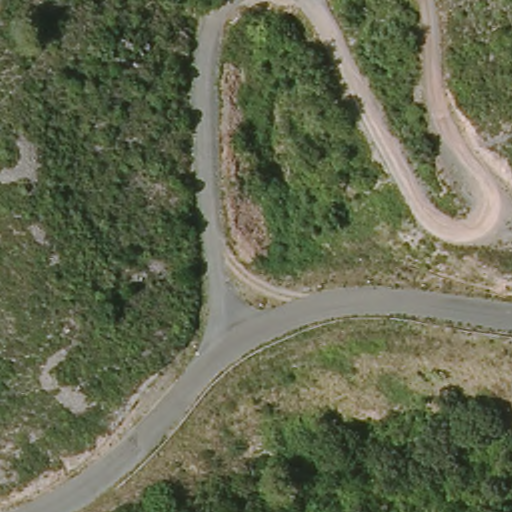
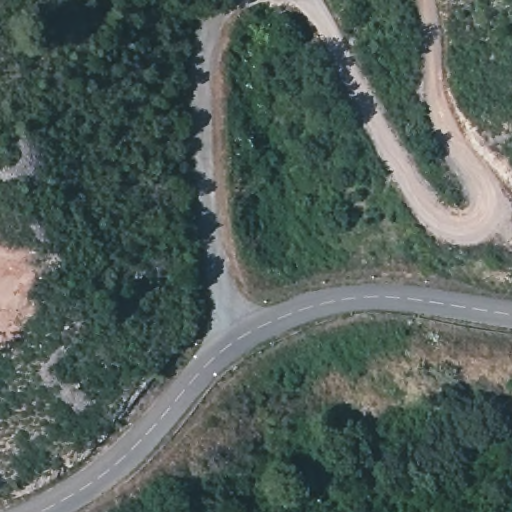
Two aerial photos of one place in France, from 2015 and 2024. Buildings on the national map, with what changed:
[]

